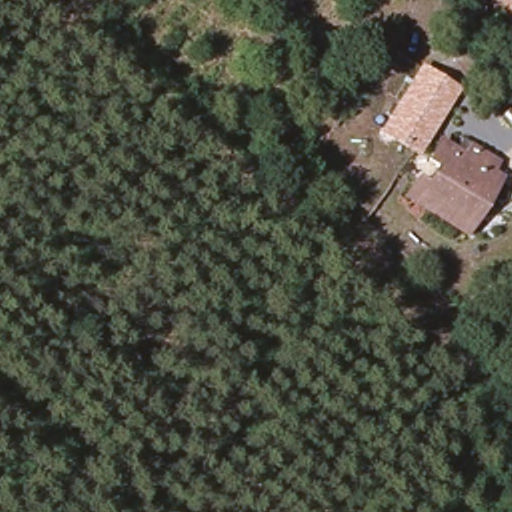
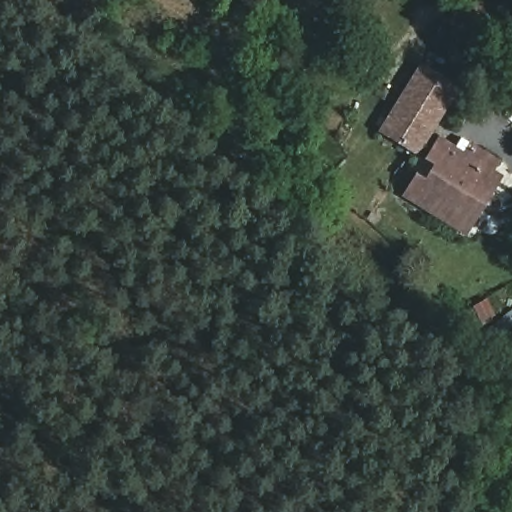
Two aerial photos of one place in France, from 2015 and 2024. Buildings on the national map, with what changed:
unchanged [(377,131),(421,64),(459,87),(417,155),(377,131)]
unchanged [(457,232),(400,197),(426,155),(440,136),(456,147),(463,138),(500,160),(495,170),(457,232)]

